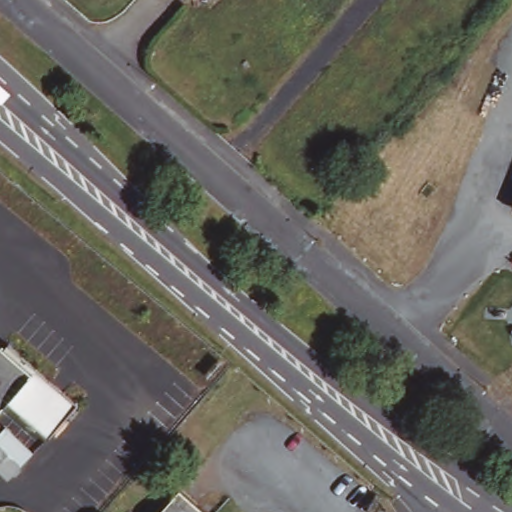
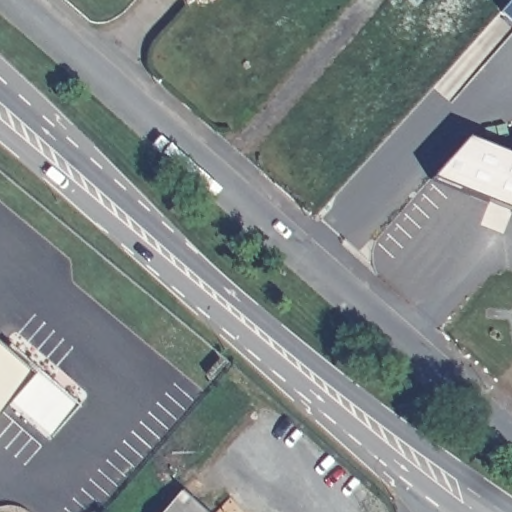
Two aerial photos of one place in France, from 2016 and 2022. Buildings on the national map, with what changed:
new [(509,0),(512,0),(512,24),(499,12),(509,0)]
new [(509,156),(512,147),(512,211),(511,211),(433,178),(466,140),(509,156)]
unchanged [(5,357),(11,351),(81,415),(51,448),(9,410),(0,420),(0,352),(5,357)]
unchanged [(209,512),(168,512),(188,491),(209,512)]

